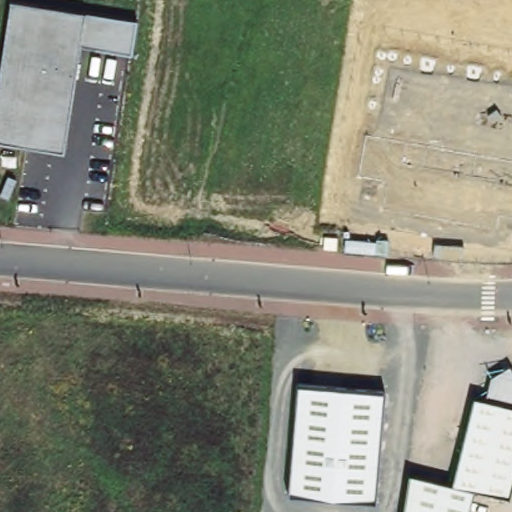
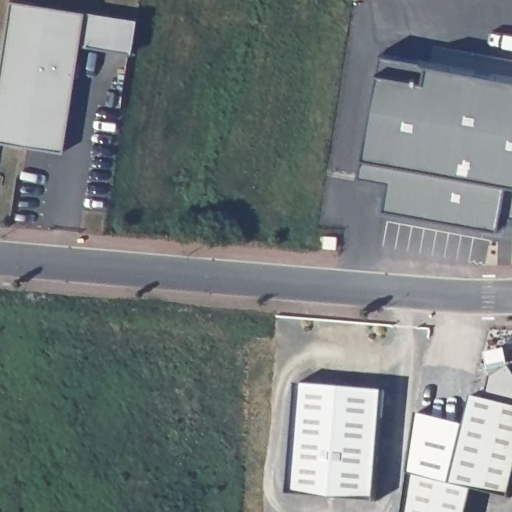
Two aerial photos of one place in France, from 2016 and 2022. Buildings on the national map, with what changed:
unchanged [(16,0),(136,18),(131,54),(80,45),(63,152),(0,140),(0,55),(9,0),(16,0)]
new [(381,51),(512,76),(512,219),(498,216),(495,230),(381,207),(387,180),(357,174),(381,51)]
unchanged [(452,485),(475,395),(485,397),(489,377),(508,366),(512,372),(512,481),(508,498),(476,490),(470,512),(404,512),(410,473),(452,485)]
unchanged [(376,501),(290,492),(299,383),(385,390),(376,501)]

